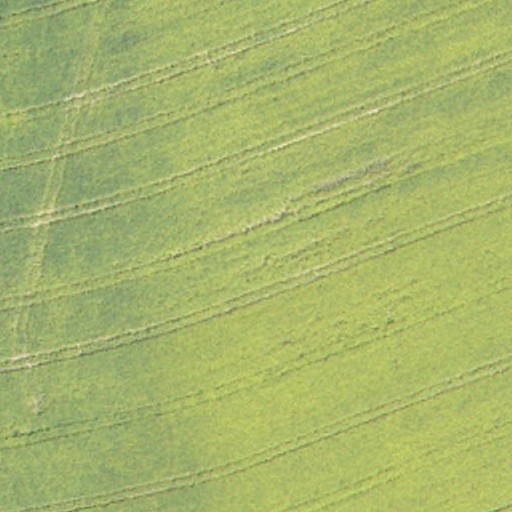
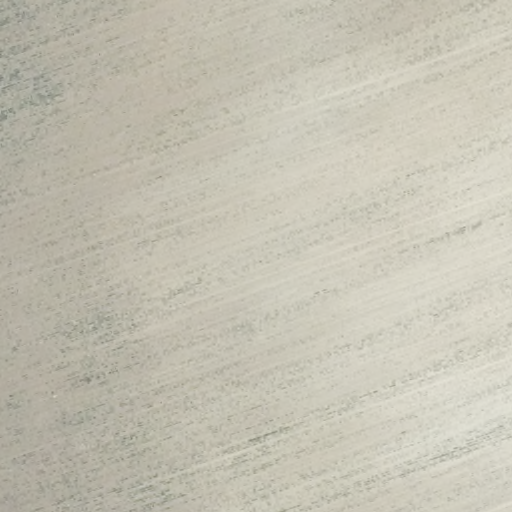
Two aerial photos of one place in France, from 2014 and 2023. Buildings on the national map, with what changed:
[]

